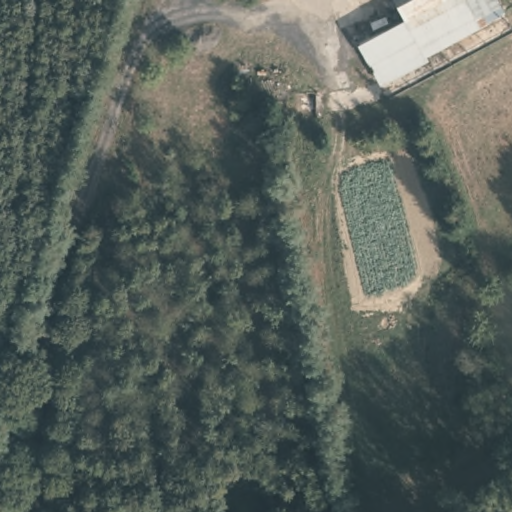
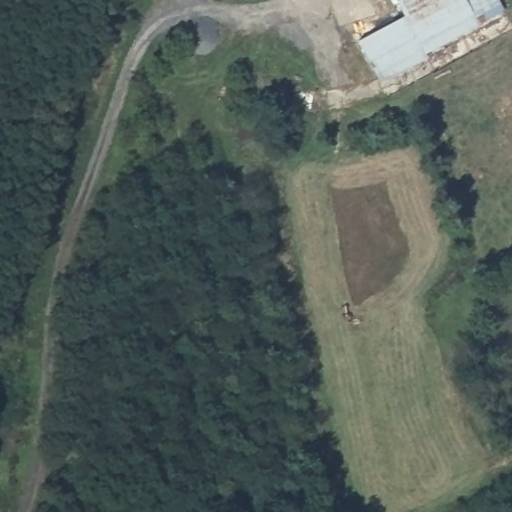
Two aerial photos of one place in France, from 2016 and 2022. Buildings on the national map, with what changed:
unchanged [(361,34),(403,10),(399,0),(421,0),(501,0),(504,5),(381,76),(361,34)]

